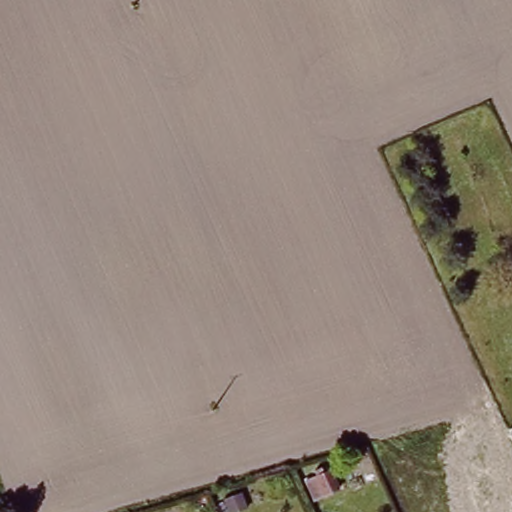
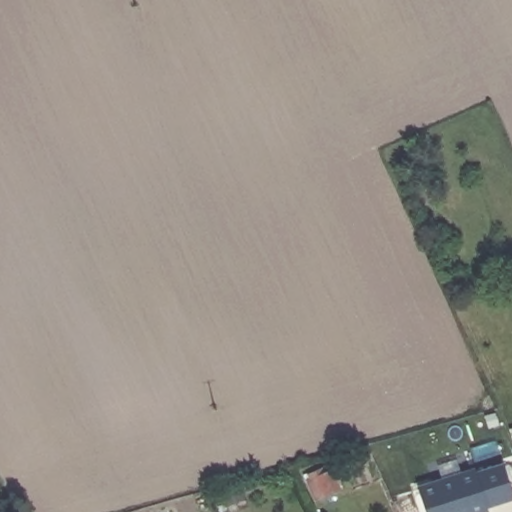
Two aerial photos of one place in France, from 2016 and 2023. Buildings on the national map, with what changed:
unchanged [(342,476),(330,481),(324,467),(336,461),(342,476)]
new [(475,471),(502,463),(512,496),(512,500),(487,508),(488,512),(426,512),(417,485),(474,467),(475,471)]

